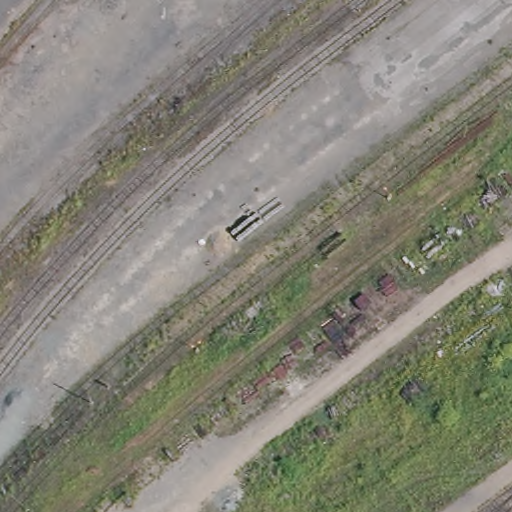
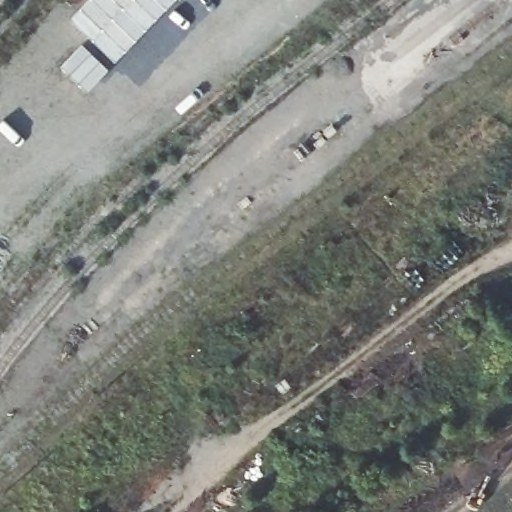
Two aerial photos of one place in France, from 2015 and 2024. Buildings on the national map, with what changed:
new [(116,62),(71,18),(89,0),(176,0),(116,62)]

